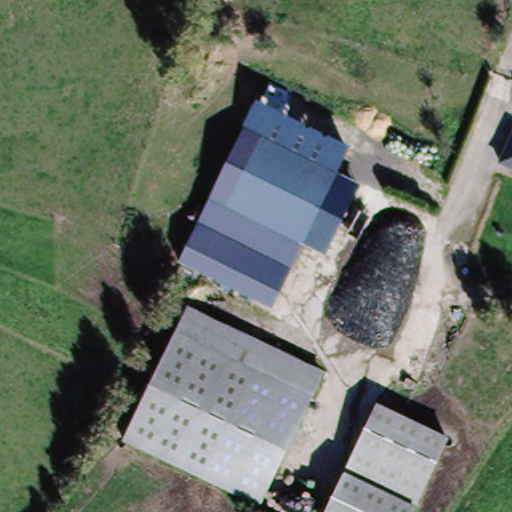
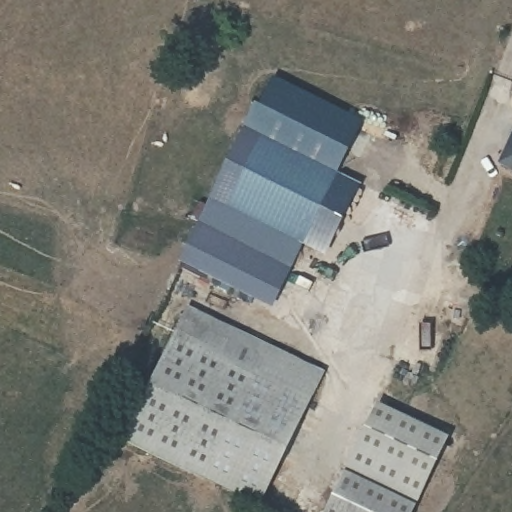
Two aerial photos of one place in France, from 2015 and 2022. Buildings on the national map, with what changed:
unchanged [(359,139),(346,171),(364,182),(333,256),(304,245),(278,306),(188,262),(264,101),(359,139)]
unchanged [(506,163),(512,149),(512,166),(506,163)]
unchanged [(189,311),(273,350),(206,487),(122,446),(189,311)]
unchanged [(321,373),(256,510),(206,487),(273,350),(321,373)]
unchanged [(337,512),(326,512),(376,406),(449,440),(416,508),(353,478),(337,512)]
unchanged [(420,512),(337,512),(353,478),(421,511),(420,512)]

